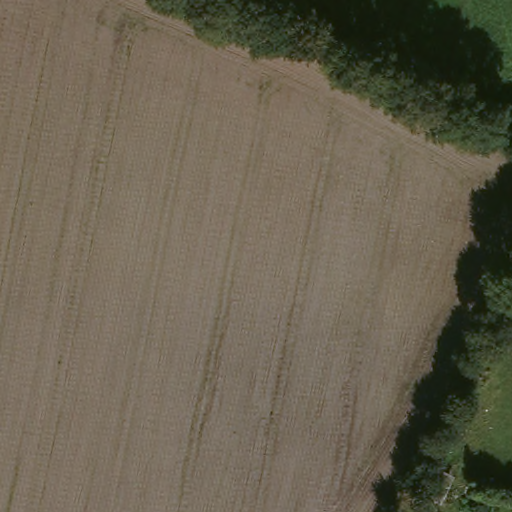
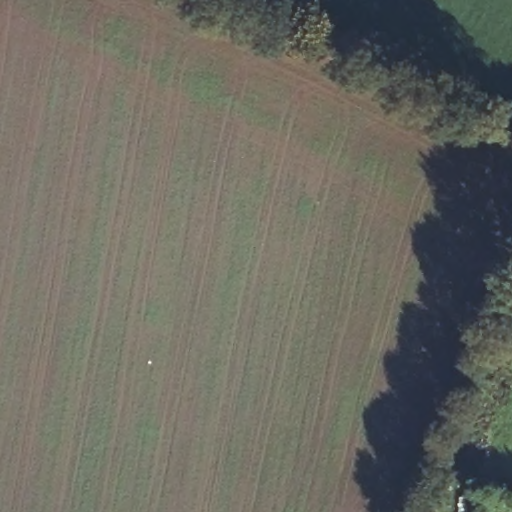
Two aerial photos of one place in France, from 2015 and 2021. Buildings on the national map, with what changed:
unchanged [(427,484),(443,495),(434,512),(410,512),(427,484)]

